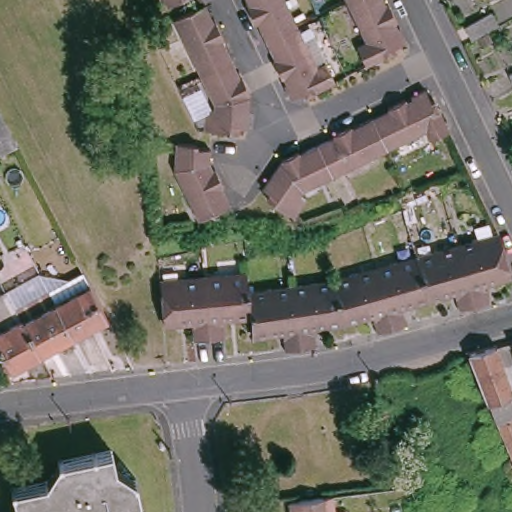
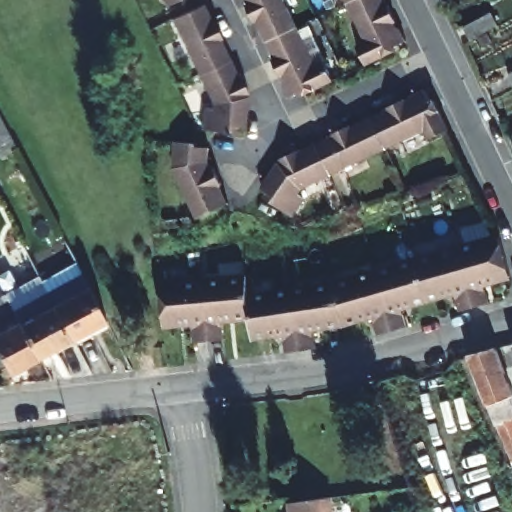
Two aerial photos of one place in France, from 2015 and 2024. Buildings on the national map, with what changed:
unchanged [(162,5),(159,0),(173,0),(162,5)]
unchanged [(258,18),(255,19),(247,2),(249,1),(249,0),(286,0),(294,16),(297,24),(267,38),(258,18)]
unchanged [(345,0),(348,0),(346,1),(345,0)]
unchanged [(388,2),(394,15),(396,19),(393,20),(396,26),(399,25),(405,39),(394,44),(395,48),(382,54),(363,63),(355,44),(364,40),(346,1),(348,0),(383,0),(385,3),(388,2)]
unchanged [(211,23),(213,22),(215,21),(224,40),(220,41),(225,51),(230,61),(199,75),(174,20),(200,7),(203,5),(211,23)]
unchanged [(472,43),(465,30),(491,15),(498,28),(472,43)]
unchanged [(315,62),(324,59),(333,78),(320,84),(304,91),(302,88),(290,94),(285,81),(284,80),(286,79),(284,73),(280,74),(273,55),(275,54),(270,44),(267,38),(297,24),(315,62)]
unchanged [(238,77),(242,76),(249,94),(245,95),(247,98),(245,126),(236,126),(236,131),(203,129),(204,115),(212,114),(213,105),(199,75),(230,61),(238,77)]
unchanged [(512,76),(512,78),(511,76),(512,76)]
unchanged [(388,113),(387,110),(393,107),(404,101),(405,104),(412,101),(411,98),(425,91),(430,105),(431,104),(434,103),(448,133),(430,141),(427,133),(387,151),(373,120),(388,113)]
unchanged [(332,177),(317,147),(332,139),(333,134),(350,127),(351,130),(373,120),(387,151),(332,177)]
unchanged [(210,150),(209,155),(209,161),(211,168),(215,167),(223,184),(220,185),(228,204),(198,218),(175,169),(176,144),(196,144),(196,149),(210,150)]
unchanged [(298,197),(304,202),(291,219),(264,199),(267,195),(261,190),(278,166),(282,163),(280,159),(298,152),(300,155),(317,147),(332,177),(302,191),(298,197)]
unchanged [(464,310),(459,292),(432,299),(420,262),(461,250),(462,250),(502,239),(512,270),(512,277),(488,284),(493,301),(494,304),(465,312),(464,310)]
unchanged [(412,326),(396,331),(379,273),(420,262),(432,299),(406,307),(412,326)]
unchanged [(379,273),(396,331),(382,335),(376,316),(347,324),(340,284),(379,273)]
unchanged [(50,294),(88,275),(107,313),(110,317),(112,322),(75,341),(50,294)]
unchanged [(226,327),(227,341),(213,342),(197,343),(196,329),(168,332),(164,287),(207,284),(251,281),(252,297),(255,323),(226,327)]
unchanged [(319,347),(305,349),(296,291),(340,284),(347,324),(317,328),(319,347)]
unchanged [(296,291),(305,349),(289,353),(286,333),(256,337),(255,323),(252,297),(296,291)]
unchanged [(75,341),(41,359),(15,312),(50,294),(75,341)]
unchanged [(0,359),(0,302),(8,298),(15,312),(41,359),(9,375),(0,359)]
unchanged [(512,339),(512,348),(509,339),(512,339)]
unchanged [(489,406),(478,378),(469,356),(497,349),(505,368),(512,387),(512,460),(511,460),(489,406)]
demolished [(51,480),(64,459),(115,450),(118,466),(139,480),(146,512),(22,512),(17,487),(51,480)]
unchanged [(299,500),(332,494),(335,512),(293,512),(291,501),(299,500)]

